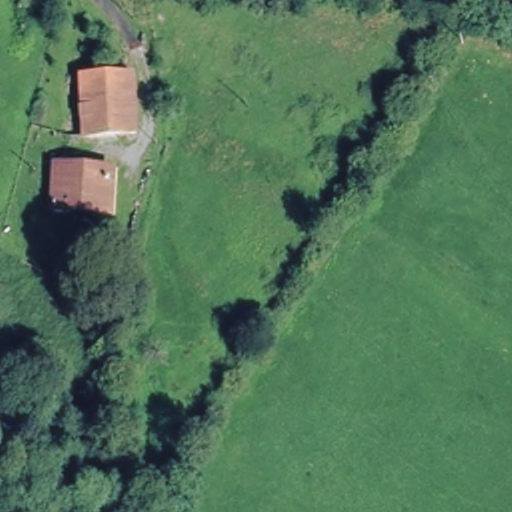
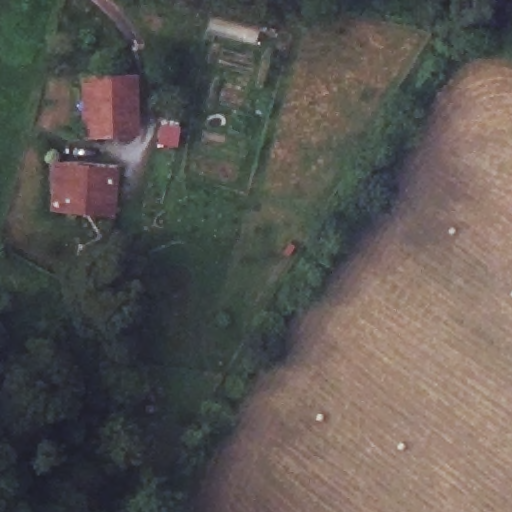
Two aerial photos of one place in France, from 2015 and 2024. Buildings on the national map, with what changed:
unchanged [(131,73),(135,73),(137,136),(134,136),(84,139),(83,127),(81,77),(131,73)]
unchanged [(60,204),(62,166),(78,167),(121,171),(118,193),(114,211),(72,206),(60,204)]

